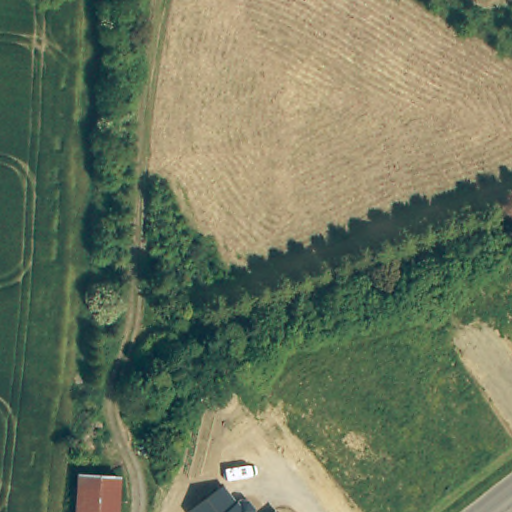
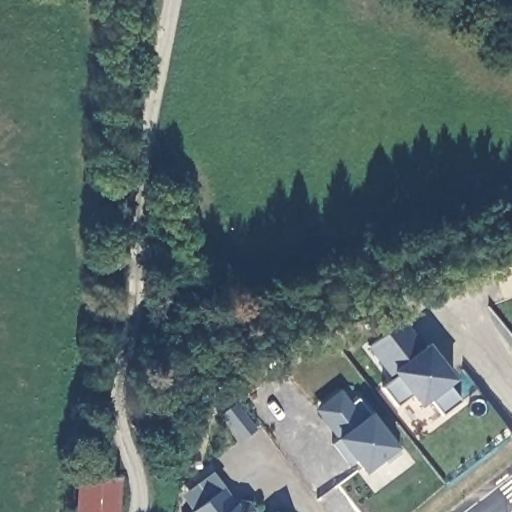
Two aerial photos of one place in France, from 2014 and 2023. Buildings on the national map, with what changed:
demolished [(463,325),(458,310),(477,303),(490,338),(471,346),(463,325)]
new [(404,320),(425,345),(428,343),(456,379),(448,385),(459,401),(442,413),(431,398),(421,405),(412,396),(397,405),(383,387),(393,380),(368,347),(404,320)]
new [(341,390),(352,404),(358,400),(371,414),(398,447),(401,451),(386,463),(382,458),(365,472),(355,459),(349,463),(333,443),(338,439),(337,438),(315,410),(341,390)]
unchanged [(116,512),(75,512),(77,473),(118,475),(116,512)]
unchanged [(223,485),(237,502),(239,500),(249,501),(256,511),(256,512),(188,512),(187,511),(223,485)]
unchanged [(277,512),(274,512),(275,511),(277,512)]

